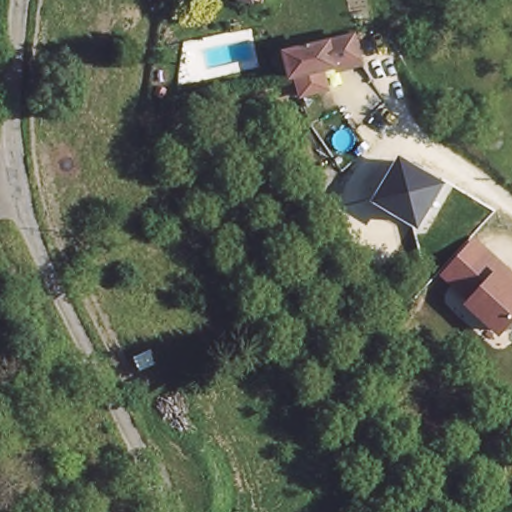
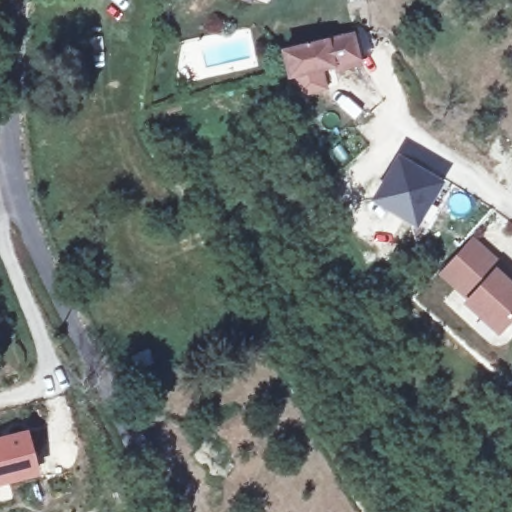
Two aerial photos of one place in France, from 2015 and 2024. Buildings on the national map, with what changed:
unchanged [(289,73),(280,45),(329,32),(348,27),(349,66),(341,68),(289,73)]
unchanged [(374,169),(413,192),(389,231),(351,208),(374,169)]
unchanged [(460,303),(466,298),(454,287),(490,248),(512,269),(512,326),(500,339),(460,303)]
new [(27,429),(39,473),(0,485),(0,436),(27,429)]

